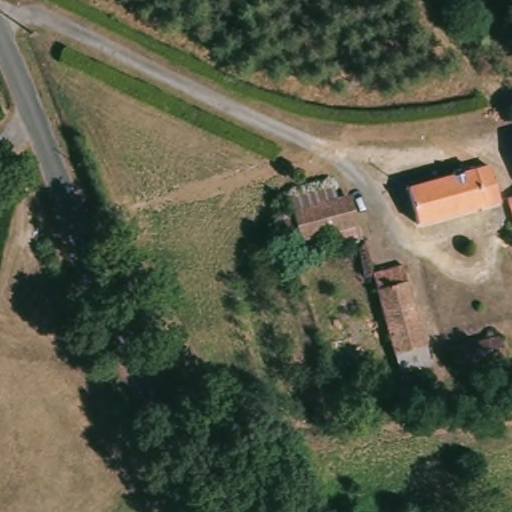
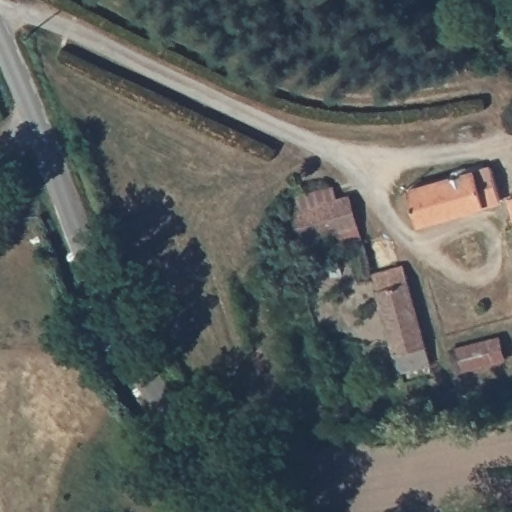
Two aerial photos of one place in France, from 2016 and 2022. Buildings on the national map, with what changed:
unchanged [(489,167),(501,203),(420,228),(408,192),(489,167)]
unchanged [(340,231),(331,200),(333,199),(351,195),(361,245),(332,252),(327,235),(340,231)]
unchanged [(507,199),(512,198),(512,212),(507,199)]
unchanged [(289,211),(331,200),(340,231),(327,235),(282,248),(273,216),(289,211)]
unchanged [(401,264),(427,363),(393,371),(367,272),(401,264)]
unchanged [(496,331),(502,356),(457,368),(451,343),(496,331)]

